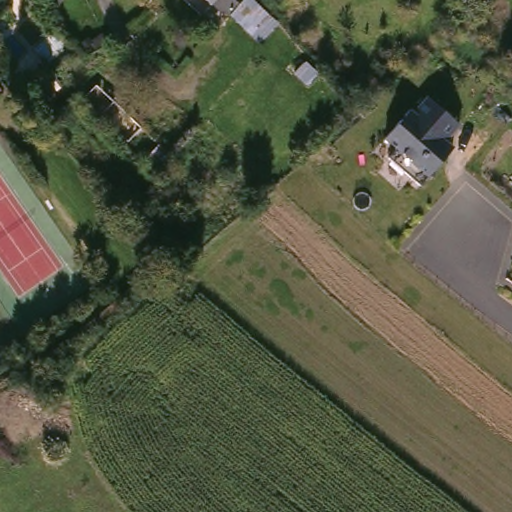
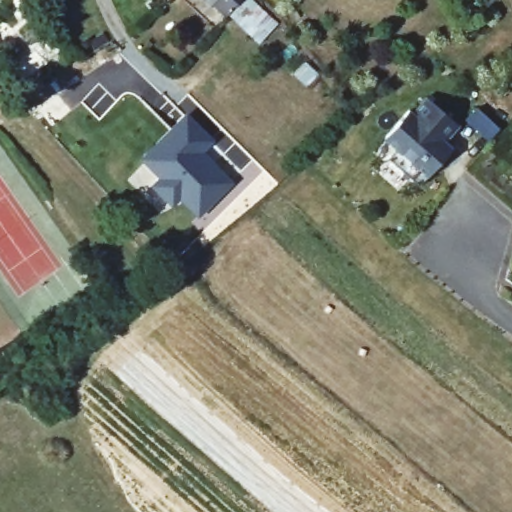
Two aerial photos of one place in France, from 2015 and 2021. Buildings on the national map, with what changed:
unchanged [(220,8),(216,13),(197,0),(247,0),(234,17),(220,8)]
new [(42,84),(47,93),(24,105),(16,99),(42,84)]
demolished [(124,122),(111,135),(76,100),(89,86),(124,122)]
unchanged [(405,106),(410,110),(422,95),(457,124),(443,139),(451,145),(426,172),(380,136),(405,106)]
new [(212,145),(201,156),(214,169),(232,185),(201,219),(182,200),(172,206),(160,194),(164,184),(145,165),(187,121),(212,145)]

